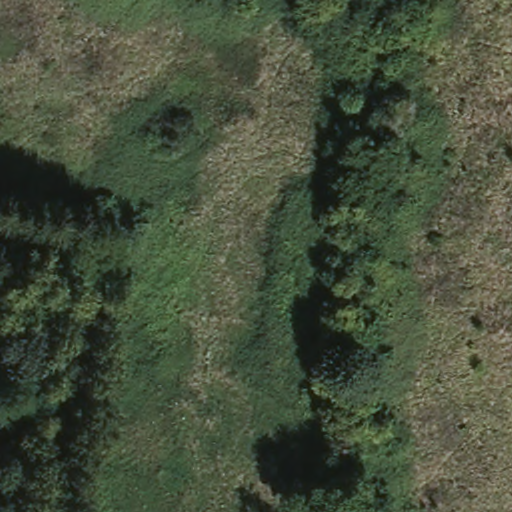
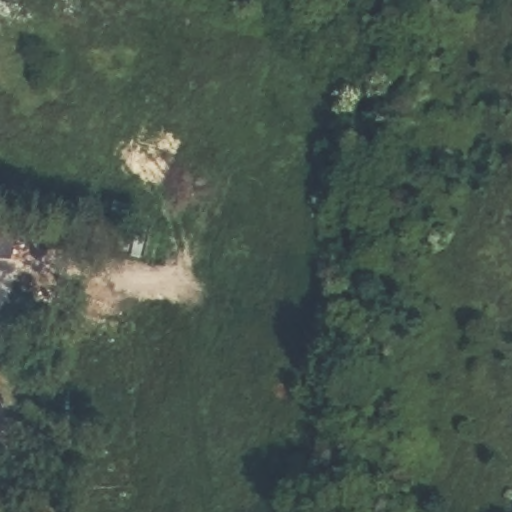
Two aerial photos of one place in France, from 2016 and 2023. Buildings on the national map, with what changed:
unchanged [(135,231),(131,252),(111,248),(115,228),(135,231)]

